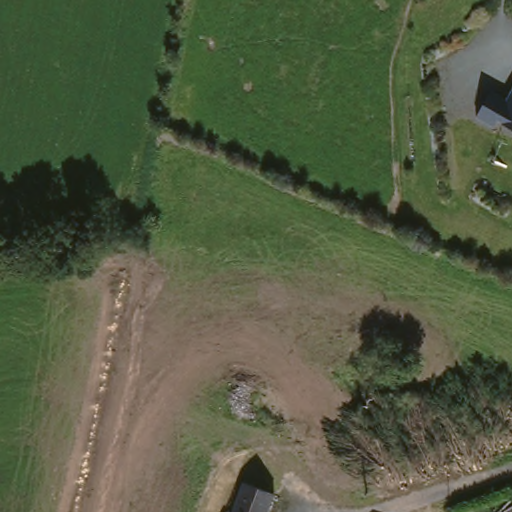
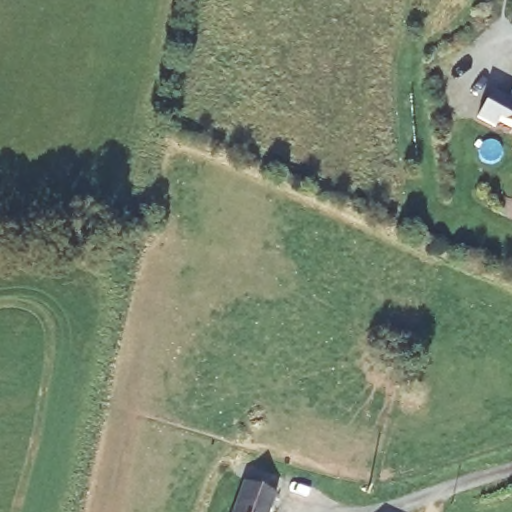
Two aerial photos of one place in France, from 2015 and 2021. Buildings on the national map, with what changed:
unchanged [(496,119),(493,125),(476,115),(489,90),(507,99),(512,90),(512,128),(496,119)]
unchanged [(254,487),(261,471),(293,483),(288,499),(283,512),(245,512),(254,487)]

